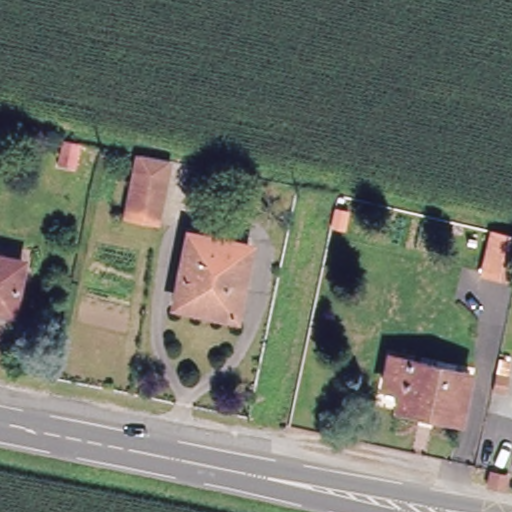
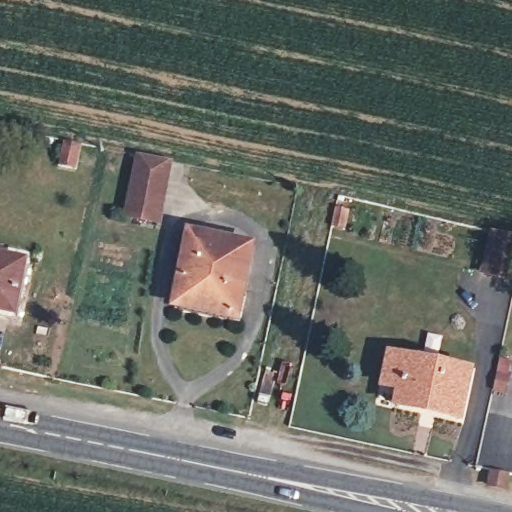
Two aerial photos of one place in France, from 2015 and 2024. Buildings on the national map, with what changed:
unchanged [(64,152),(59,177),(39,174),(44,147),(64,152)]
unchanged [(170,166),(158,227),(128,221),(141,160),(170,166)]
unchanged [(237,275),(233,293),(234,293),(238,294),(238,295),(237,296),(232,320),(207,314),(207,315),(206,319),(177,313),(179,300),(176,299),(176,297),(180,279),(174,278),(184,236),(242,248),(237,275)]
unchanged [(474,283),(483,241),(512,247),(512,266),(507,291),(474,283)]
unchanged [(0,264),(19,268),(9,322),(0,320),(0,264)]
unchanged [(404,388),(388,385),(393,357),(471,371),(461,421),(400,407),(404,388)]

